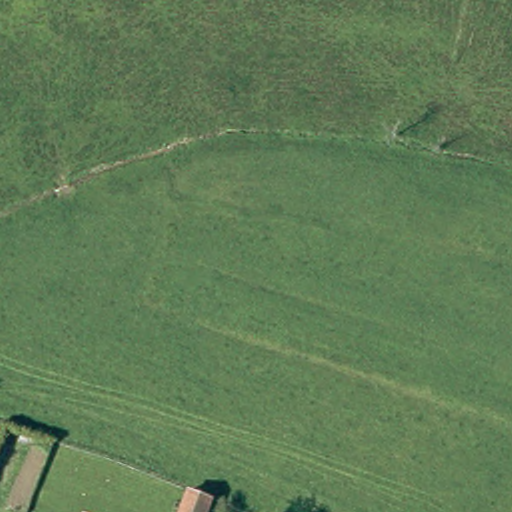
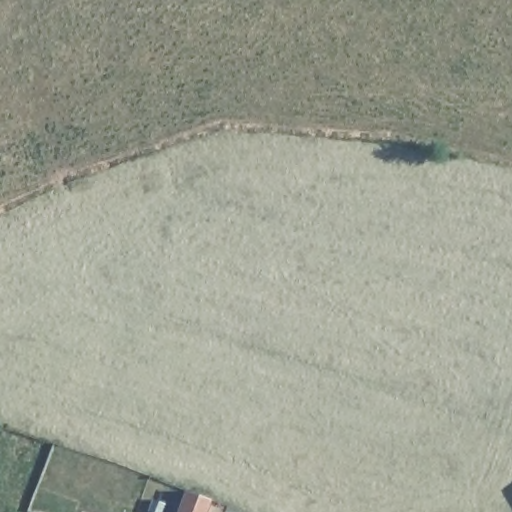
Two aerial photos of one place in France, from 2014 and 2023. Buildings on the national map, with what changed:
unchanged [(190,493),(211,502),(207,512),(183,512),(190,493)]

